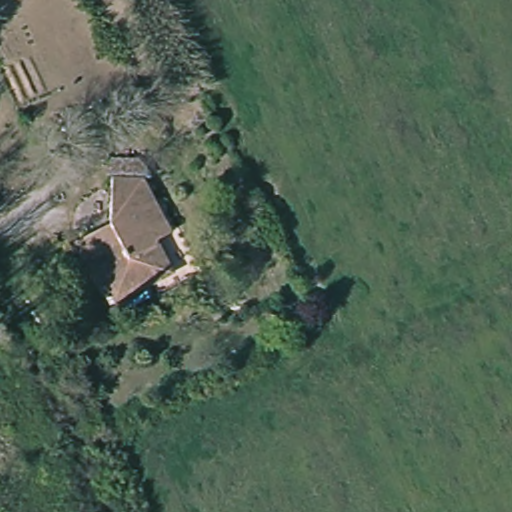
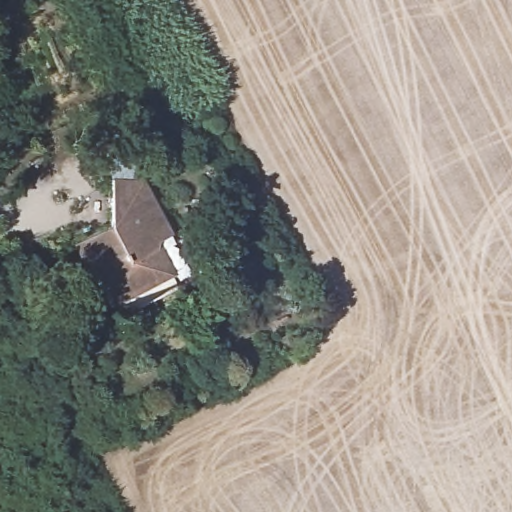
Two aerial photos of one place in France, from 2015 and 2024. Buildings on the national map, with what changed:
unchanged [(95,284),(76,248),(110,230),(115,187),(150,190),(175,240),(155,250),(168,276),(120,301),(112,289),(100,295),(95,284)]

